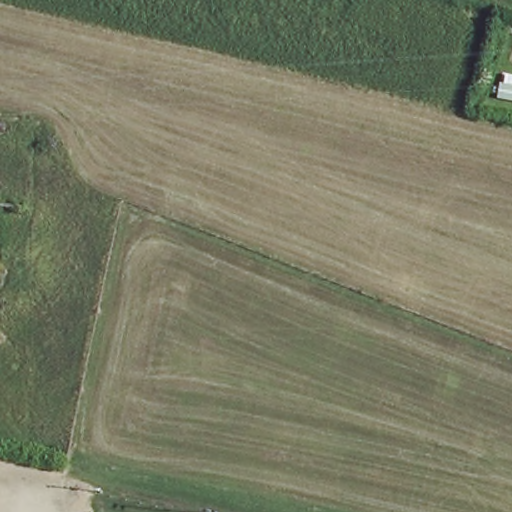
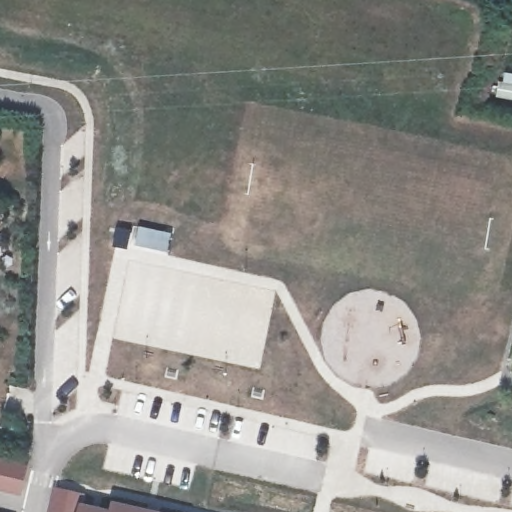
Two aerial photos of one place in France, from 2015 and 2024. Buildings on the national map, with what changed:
new [(172,233),(169,250),(135,243),(139,226),(172,233)]
new [(131,232),(128,247),(114,244),(117,230),(131,232)]
new [(28,464),(21,496),(0,491),(0,457),(28,464)]
new [(83,493),(81,502),(79,512),(49,512),(55,487),(83,493)]
new [(110,508),(112,500),(166,512),(79,512),(81,502),(110,508)]

